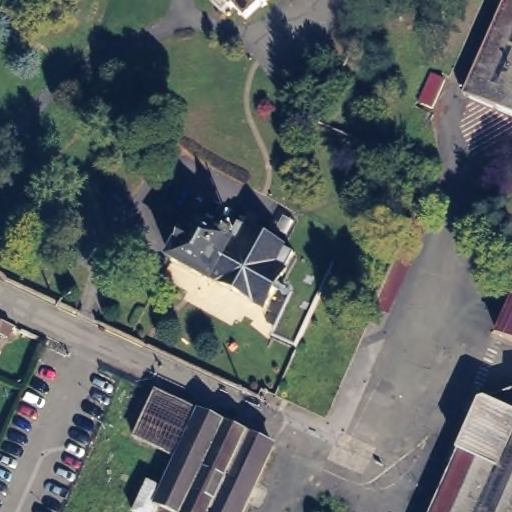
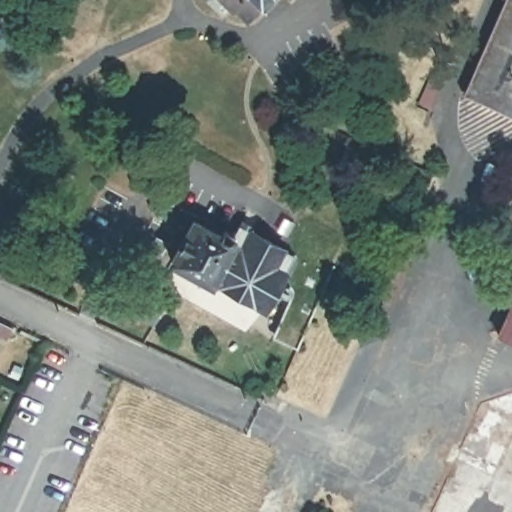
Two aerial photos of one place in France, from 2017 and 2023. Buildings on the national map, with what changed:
unchanged [(250,22),(239,10),(235,11),(232,8),(225,15),(211,0),(225,0),(275,0),(265,9),(264,7),(250,22)]
unchanged [(467,95),(510,0),(512,0),(512,115),(467,95)]
unchanged [(436,76),(447,81),(437,108),(425,103),(436,76)]
unchanged [(365,332),(413,222),(425,228),(375,347),(360,342),(357,347),(338,338),(345,323),(365,332)]
unchanged [(217,286),(215,289),(175,267),(197,226),(223,240),(230,235),(237,239),(242,230),(299,261),(270,315),(217,286)]
unchanged [(501,336),(512,312),(512,341),(501,336)]
unchanged [(14,328),(8,339),(0,335),(0,323),(0,322),(14,328)]
demolished [(249,512),(174,512),(163,507),(161,512),(138,512),(151,483),(167,488),(181,460),(138,438),(160,392),(279,447),(249,512)]
demolished [(463,448),(485,402),(512,393),(512,471),(463,448)]

